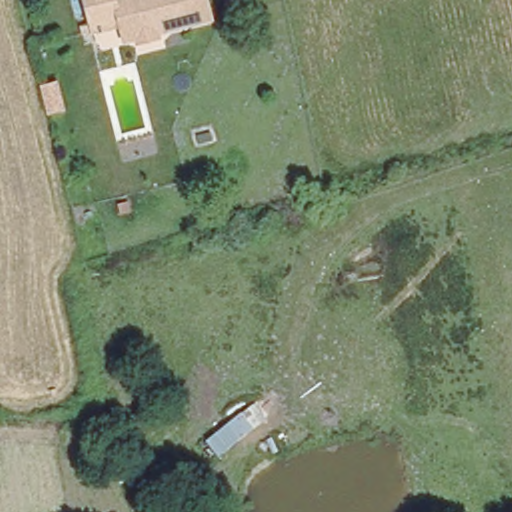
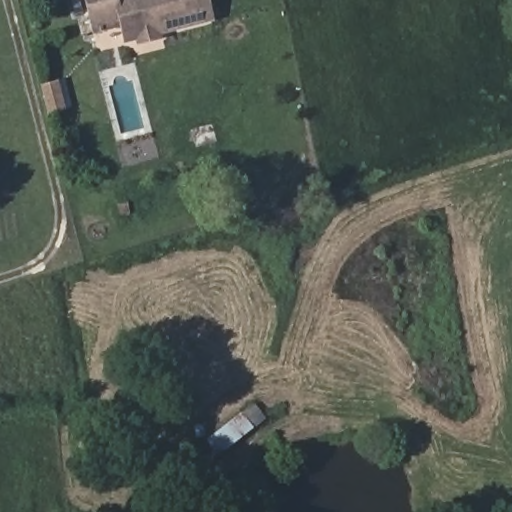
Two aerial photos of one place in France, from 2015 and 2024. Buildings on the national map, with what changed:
unchanged [(210,22),(157,34),(156,40),(136,44),(135,39),(123,41),(119,24),(90,30),(84,0),(205,0),(210,22)]

